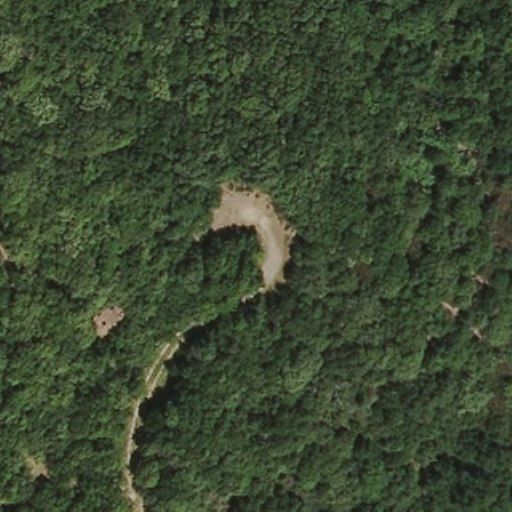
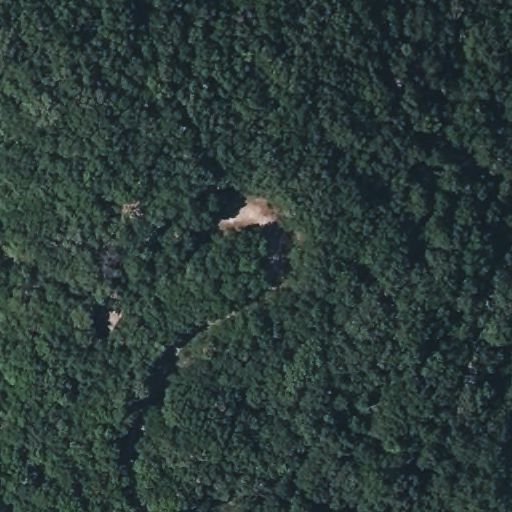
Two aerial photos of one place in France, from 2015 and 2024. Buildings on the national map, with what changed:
unchanged [(144,310),(130,301),(109,286),(128,256),(163,280),(144,310)]

